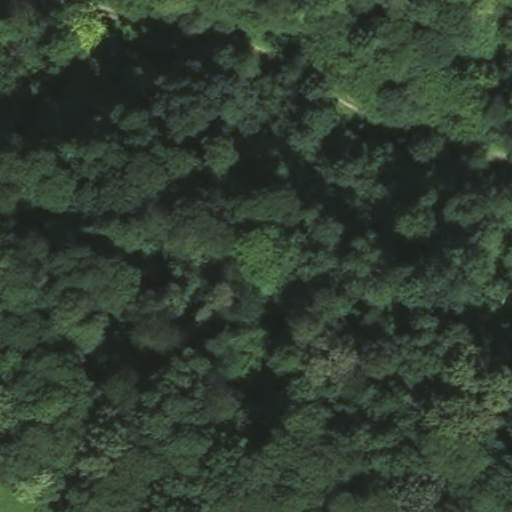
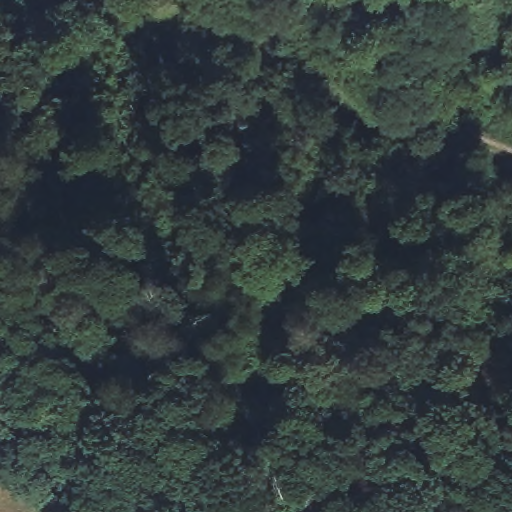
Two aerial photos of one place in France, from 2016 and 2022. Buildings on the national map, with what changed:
[]

